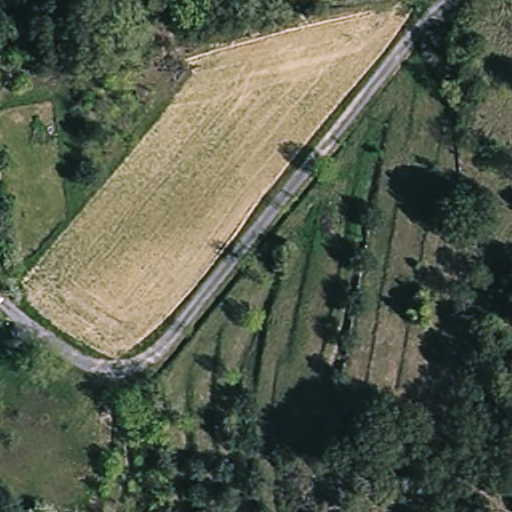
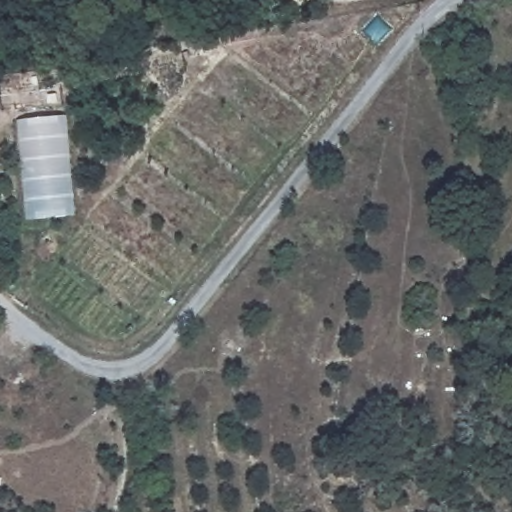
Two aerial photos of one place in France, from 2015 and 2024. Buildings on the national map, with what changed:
new [(66,115),(75,214),(24,220),(17,120),(66,115)]

